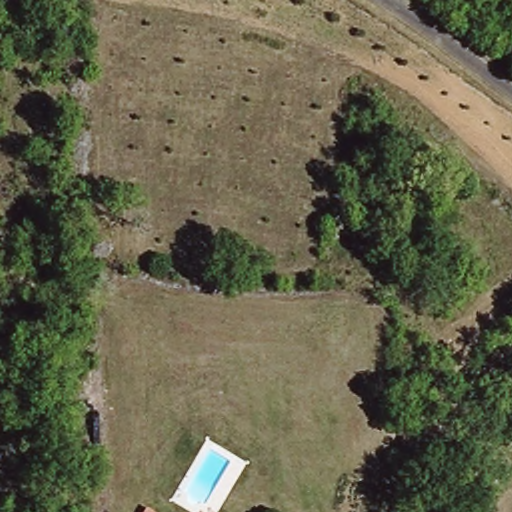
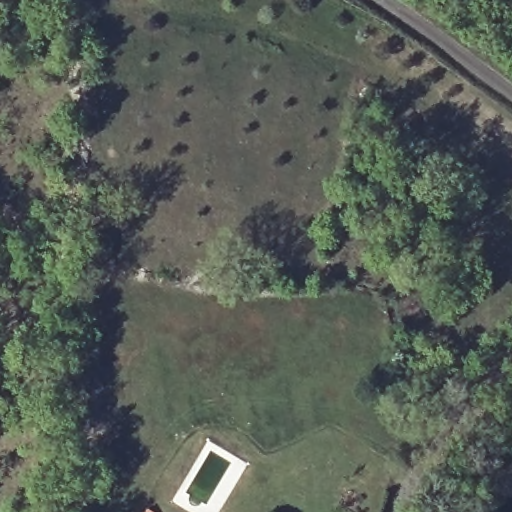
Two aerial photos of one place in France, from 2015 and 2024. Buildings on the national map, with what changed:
unchanged [(105,232),(112,239),(113,247),(107,255),(100,256),(93,253),(88,247),(90,237),(95,233),(105,232)]

